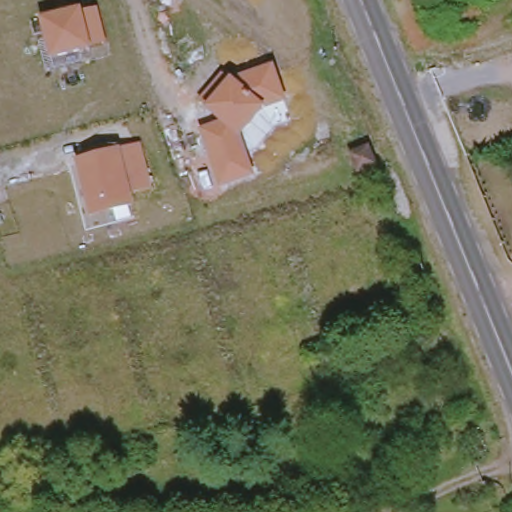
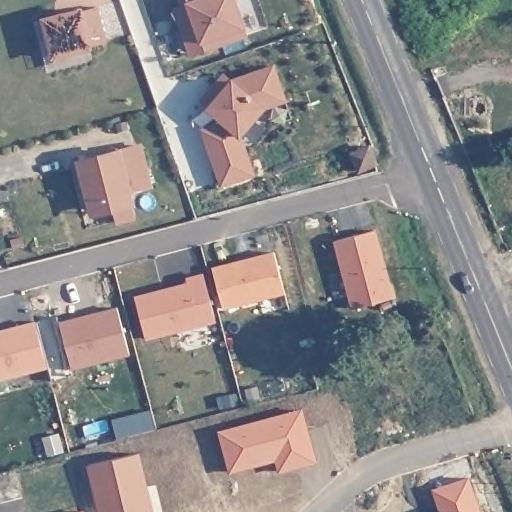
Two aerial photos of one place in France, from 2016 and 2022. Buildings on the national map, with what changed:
new [(247,36),(189,56),(173,7),(180,5),(178,0),(236,0),(247,36)]
unchanged [(80,10),(96,9),(104,45),(90,51),(48,61),(37,19),(80,10)]
unchanged [(230,79),(273,65),(285,103),(264,109),(238,140),(253,177),(218,191),(197,130),(218,123),(204,110),(197,101),(222,74),(230,79)]
unchanged [(150,190),(131,195),(133,206),(88,219),(73,161),(119,149),(140,144),(150,190)]
new [(377,230),(390,284),(393,283),(396,299),(350,309),(334,241),(377,230)]
new [(212,267),(273,251),(285,293),(222,309),(212,267)]
new [(145,341),(135,296),(187,282),(187,277),(202,273),(215,321),(145,341)]
new [(59,322),(117,307),(130,354),(71,369),(59,322)]
new [(47,368),(0,380),(0,330),(35,321),(47,368)]
unchanged [(27,497),(0,504),(0,474),(18,469),(27,497)]

